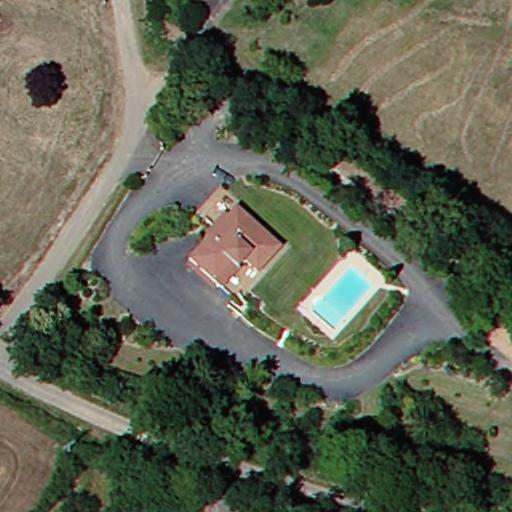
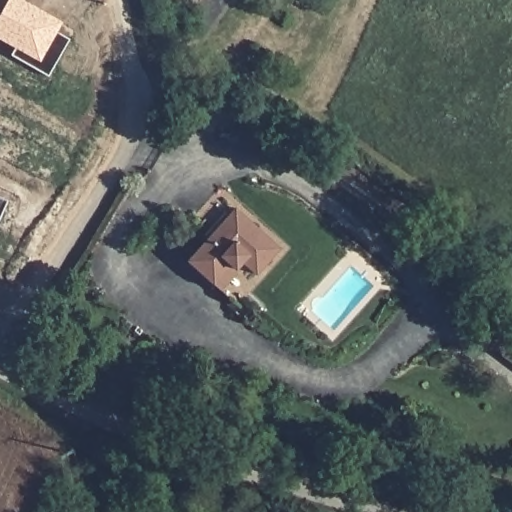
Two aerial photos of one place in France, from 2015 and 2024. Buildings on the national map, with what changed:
new [(70,38),(50,74),(13,53),(16,47),(0,38),(0,13),(7,0),(27,0),(63,21),(57,31),(70,38)]
new [(0,197),(7,200),(0,218),(0,197)]
unchanged [(232,291),(225,284),(200,261),(247,208),(291,249),(267,274),(254,262),(248,268),(251,271),(232,291)]
unchanged [(512,272),(512,289),(470,258),(476,248),(512,272)]
unchanged [(497,354),(512,334),(512,365),(497,354)]

